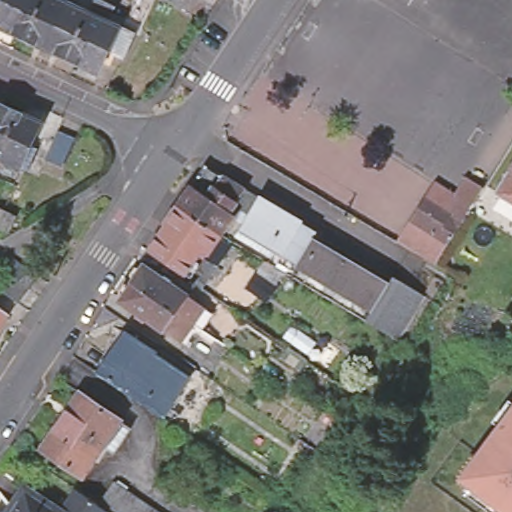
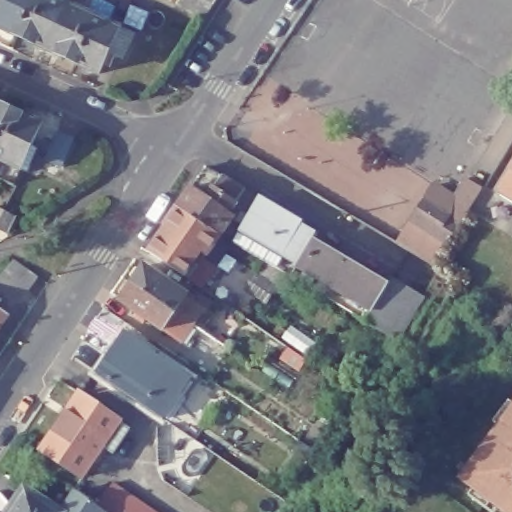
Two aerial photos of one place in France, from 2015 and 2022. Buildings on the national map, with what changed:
unchanged [(25,45),(23,42),(6,34),(0,31),(0,0),(50,0),(58,4),(36,51),(25,45)]
unchanged [(113,57),(100,50),(89,74),(66,63),(53,56),(50,58),(36,51),(58,4),(79,14),(86,0),(94,0),(97,2),(90,18),(110,28),(124,34),(113,57)]
unchanged [(215,4),(205,20),(179,3),(181,0),(218,0),(215,4)]
unchanged [(0,104),(4,106),(5,109),(22,117),(43,127),(32,150),(38,152),(27,175),(22,173),(15,188),(0,181),(0,104)]
unchanged [(80,142),(67,169),(50,161),(64,134),(80,142)]
unchanged [(239,236),(247,220),(235,213),(223,233),(178,208),(193,185),(205,166),(208,161),(240,186),(243,188),(257,197),(278,209),(260,248),(239,236)]
unchanged [(500,189),(512,170),(512,196),(500,189)]
unchanged [(445,207),(464,175),(483,187),(445,254),(402,231),(427,196),(445,207)]
unchanged [(0,208),(10,213),(22,218),(13,233),(2,228),(0,227),(0,208)]
unchanged [(188,278),(150,251),(161,235),(167,226),(178,208),(222,236),(207,258),(218,267),(204,289),(188,278)]
unchanged [(296,278),(293,276),(276,266),(280,259),(260,248),(278,209),(303,224),(322,236),(337,245),(332,255),(391,288),(395,280),(408,288),(411,289),(424,297),(397,339),(382,330),(378,328),(370,322),(355,313),(307,285),(296,278)]
unchanged [(15,256),(40,275),(32,289),(23,303),(0,287),(0,277),(5,270),(15,256)]
unchanged [(135,283),(136,283),(135,274),(138,268),(147,266),(190,296),(177,313),(135,283)]
unchanged [(123,301),(122,291),(126,286),(135,284),(135,283),(177,313),(165,330),(123,301)]
unchanged [(190,296),(233,327),(222,344),(188,321),(177,313),(190,296)]
unchanged [(0,334),(0,312),(10,319),(0,334)]
unchanged [(210,361),(165,330),(177,313),(188,321),(222,344),(210,361)]
unchanged [(92,366),(115,333),(145,351),(150,346),(187,371),(160,414),(137,397),(124,389),(92,366)]
unchanged [(79,389),(121,416),(84,474),(42,446),(79,389)]
unchanged [(505,512),(465,483),(482,461),(479,459),(512,414),(512,512),(505,512)]
unchanged [(97,500),(112,478),(161,512),(115,512),(105,505),(97,500)]
unchanged [(25,479),(62,505),(63,506),(59,512),(0,512),(0,507),(3,510),(25,479)]
unchanged [(62,505),(75,485),(97,500),(105,505),(100,512),(59,512),(63,506),(62,505)]
unchanged [(100,512),(105,505),(115,512),(100,512)]

